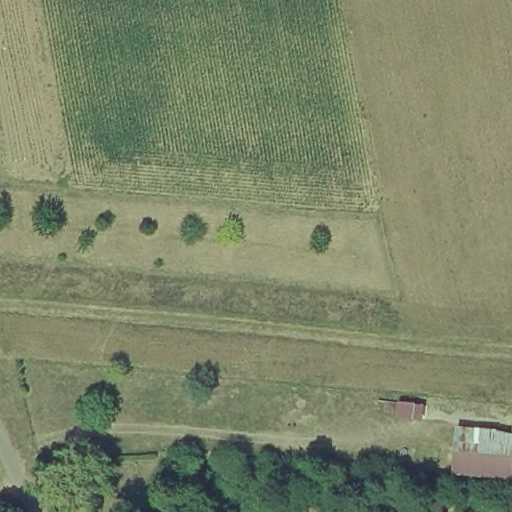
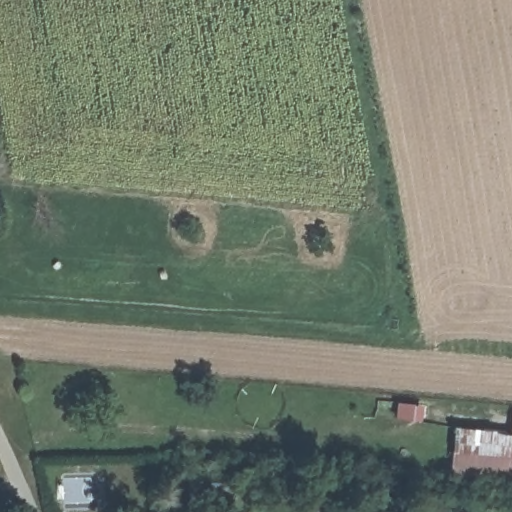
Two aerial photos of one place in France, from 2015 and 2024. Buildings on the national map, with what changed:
unchanged [(455,475),(460,424),(512,434),(512,478),(455,475)]
unchanged [(430,500),(429,512),(358,512),(358,499),(430,500)]
unchanged [(325,503),(324,512),(302,512),(301,502),(325,503)]

